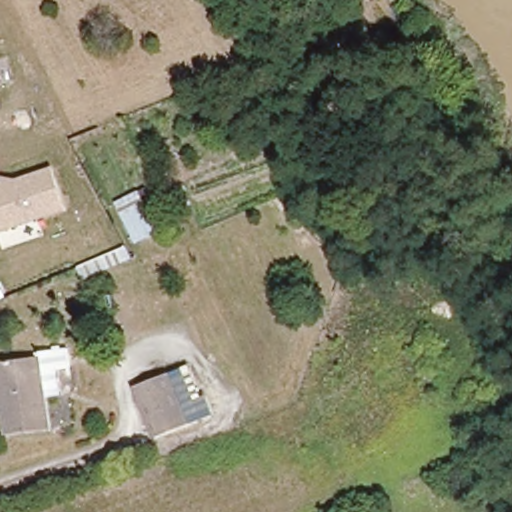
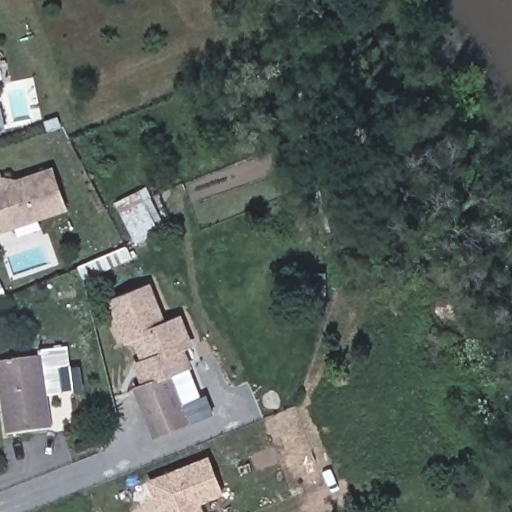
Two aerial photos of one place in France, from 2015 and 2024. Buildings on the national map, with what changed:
unchanged [(0,184),(3,183),(0,175),(0,174),(16,179),(54,166),(69,210),(0,233),(0,184)]
unchanged [(154,232),(138,240),(116,200),(133,191),(154,232)]
unchanged [(89,278),(82,263),(126,245),(134,260),(89,278)]
new [(208,395),(215,415),(154,438),(135,390),(142,386),(133,362),(140,360),(134,341),(124,344),(107,300),(151,282),(166,320),(182,314),(194,345),(184,349),(203,397),(208,395)]
unchanged [(68,351),(73,375),(58,377),(61,401),(46,403),(39,356),(68,351)]
unchanged [(50,425),(8,430),(5,415),(12,414),(10,401),(1,402),(0,392),(0,362),(39,356),(46,403),(50,425)]
demolished [(193,428),(155,442),(134,391),(171,379),(193,428)]
new [(224,495),(202,504),(205,512),(160,512),(148,480),(209,455),(224,495)]

